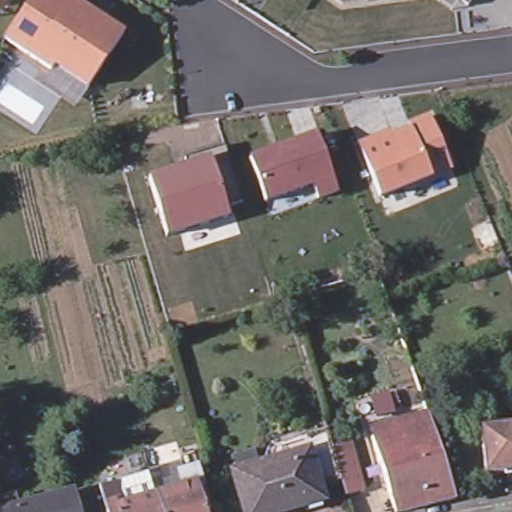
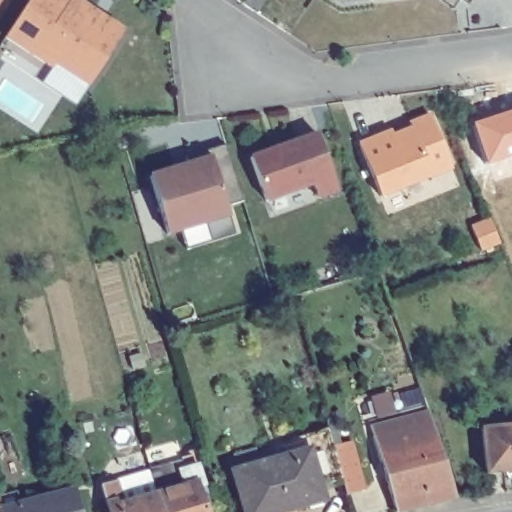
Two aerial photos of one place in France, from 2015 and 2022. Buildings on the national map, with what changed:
unchanged [(89,9),(103,19),(122,31),(87,85),(53,63),(50,67),(3,35),(26,0),(75,0),(89,9)]
unchanged [(367,3),(367,0),(394,0),(367,3)]
unchanged [(464,11),(452,0),(470,0),(464,11)]
new [(512,112),(512,156),(489,163),(474,124),(512,112)]
unchanged [(434,180),(382,201),(361,149),(393,135),(395,140),(413,133),(412,128),(432,120),(451,165),(453,172),(434,180)]
unchanged [(268,205),(253,162),(320,138),(340,196),(320,203),(273,220),(268,205)]
unchanged [(240,200),(225,205),(227,220),(168,236),(152,171),(205,156),(202,151),(225,145),(240,200)]
unchanged [(384,482),(367,427),(425,407),(430,423),(453,500),(406,512),(392,512),(390,505),(375,508),(369,486),(384,482)]
unchanged [(328,446),(328,447),(337,480),(317,486),(307,452),(302,436),(324,430),(328,446)]
unchanged [(490,479),(485,433),(512,430),(512,476),(490,479)]
unchanged [(347,442),(361,491),(342,496),(337,480),(328,447),(347,442)]
unchanged [(322,501),(282,512),(241,512),(230,474),(307,452),(317,486),(322,501)]
unchanged [(178,475),(197,469),(203,489),(196,491),(202,512),(158,512),(154,497),(182,489),(178,475)]
unchanged [(73,495),(78,512),(38,512),(37,505),(73,495)]
unchanged [(115,500),(122,498),(125,506),(154,497),(158,512),(106,512),(104,503),(115,500)]
unchanged [(38,512),(11,512),(37,505),(38,512)]

